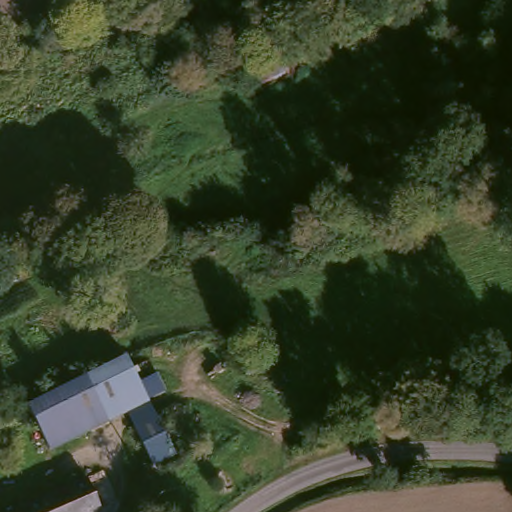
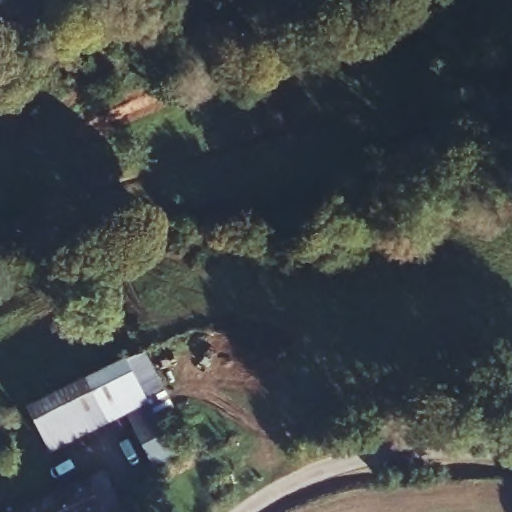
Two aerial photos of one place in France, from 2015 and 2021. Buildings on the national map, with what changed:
unchanged [(131,352),(178,451),(158,461),(133,407),(124,411),(103,366),(131,352)]
unchanged [(103,366),(124,411),(96,425),(74,380),(103,366)]
unchanged [(96,425),(56,444),(35,398),(74,380),(96,425)]
unchanged [(78,482),(90,512),(7,512),(78,482)]

